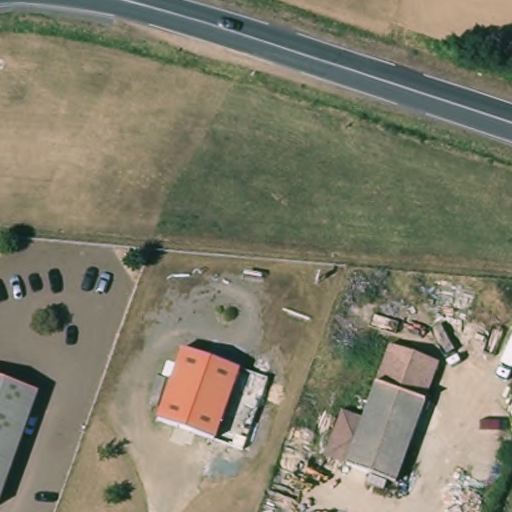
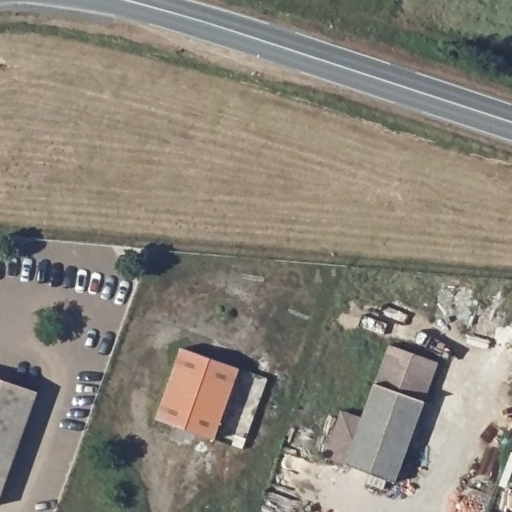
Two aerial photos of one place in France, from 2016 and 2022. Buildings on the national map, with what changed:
unchanged [(436,363),(391,482),(343,462),(361,417),(388,345),(436,363)]
unchanged [(186,346),(242,366),(216,437),(160,417),(186,346)]
unchanged [(37,395),(0,508),(0,382),(37,395)]
unchanged [(322,455),(340,409),(361,417),(343,462),(322,455)]

